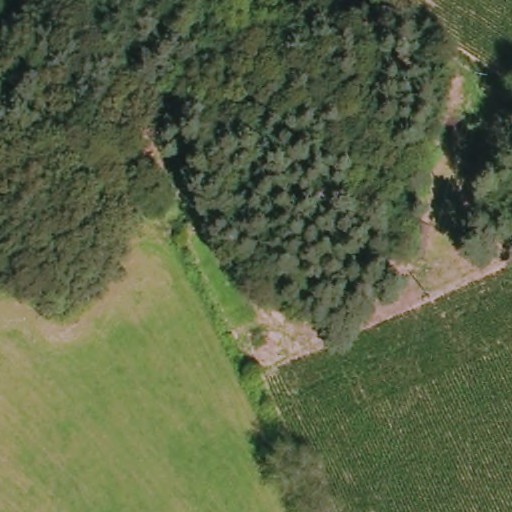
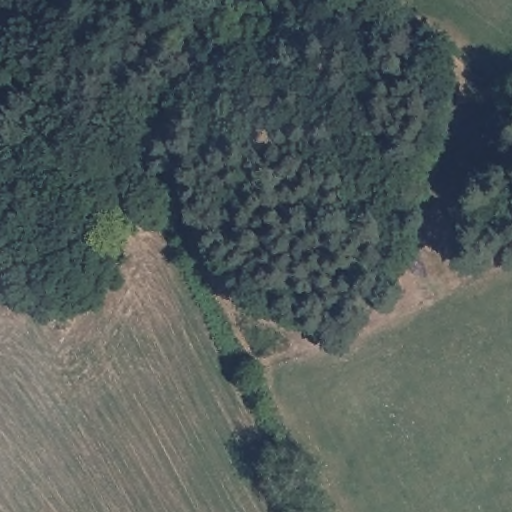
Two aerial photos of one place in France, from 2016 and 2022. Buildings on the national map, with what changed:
unchanged [(426,259),(397,253),(404,223),(432,228),(426,259)]

